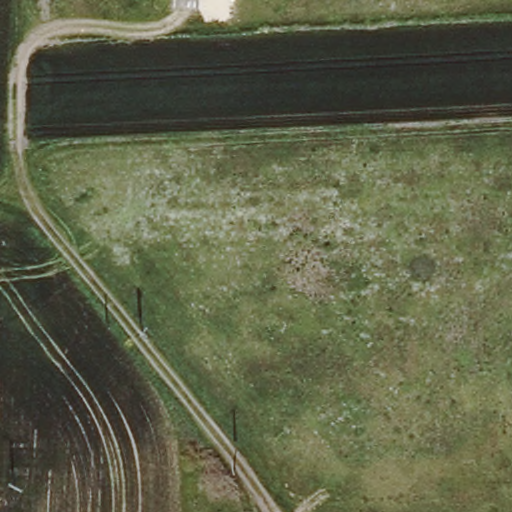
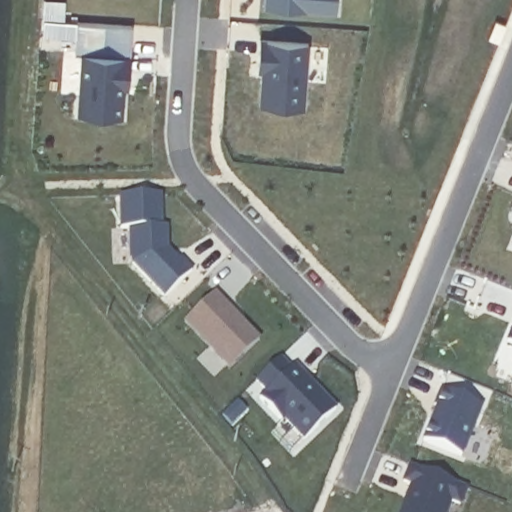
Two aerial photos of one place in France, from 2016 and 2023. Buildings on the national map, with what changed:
new [(263,0),(337,0),(337,12),(263,6),(263,0)]
new [(130,25),(127,56),(130,56),(127,89),(123,89),(121,116),(75,112),(80,55),(73,54),(75,22),(130,25)]
new [(497,22),(510,28),(502,45),(490,39),(497,22)]
new [(260,72),(255,72),(256,38),(308,42),(303,109),(257,106),(260,72)]
new [(132,264),(127,228),(120,228),(118,197),(162,195),(162,227),(167,227),(167,249),(178,259),(180,258),(192,271),(164,298),(132,264)]
new [(512,243),(512,246),(511,246),(512,243)]
new [(213,294),(259,339),(228,371),(180,323),(213,294)]
new [(505,341),(512,324),(512,344),(505,341)]
new [(265,392),(255,382),(280,356),(292,368),(293,366),(335,408),(305,440),(285,419),(280,421),(258,397),(265,392)]
new [(510,382),(512,378),(512,383),(510,382)]
new [(481,404),(462,458),(422,441),(435,409),(432,407),(438,389),(481,404)]
new [(402,484),(410,465),(458,483),(457,485),(467,488),(460,506),(450,503),(447,512),(399,512),(410,486),(402,484)]

